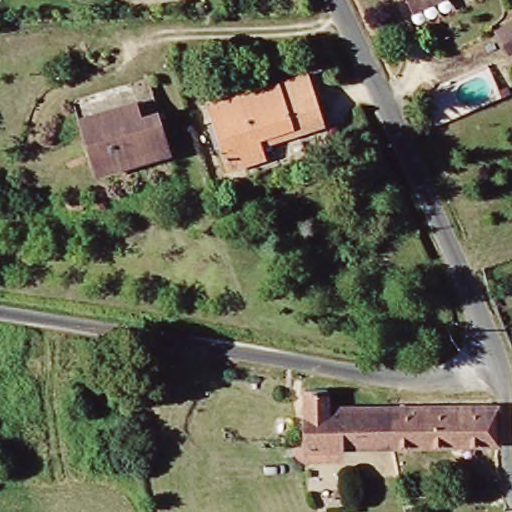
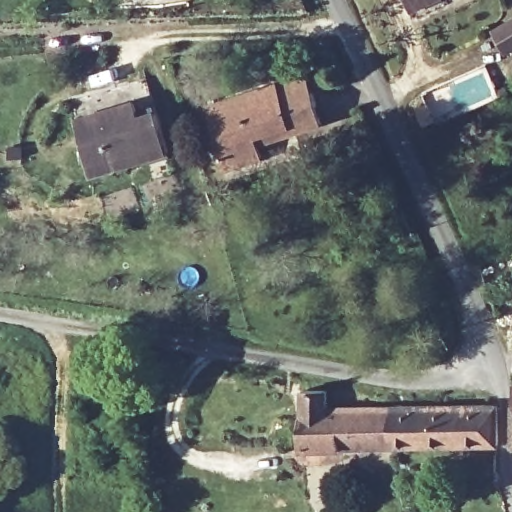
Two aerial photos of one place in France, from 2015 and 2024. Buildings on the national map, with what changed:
unchanged [(412,1),(411,0),(414,0),(412,1)]
unchanged [(498,29),(512,22),(512,47),(507,49),(498,29)]
unchanged [(218,99),(312,69),(328,118),(261,139),(267,159),(231,169),(222,145),(207,103),(218,99)]
unchanged [(77,112),(136,95),(140,111),(160,108),(168,139),(171,150),(94,172),(91,160),(77,112)]
unchanged [(308,446),(307,387),(330,387),(330,404),(395,403),(397,444),(308,446)]
unchanged [(502,441),(397,444),(395,403),(429,402),(500,402),(502,441)]

